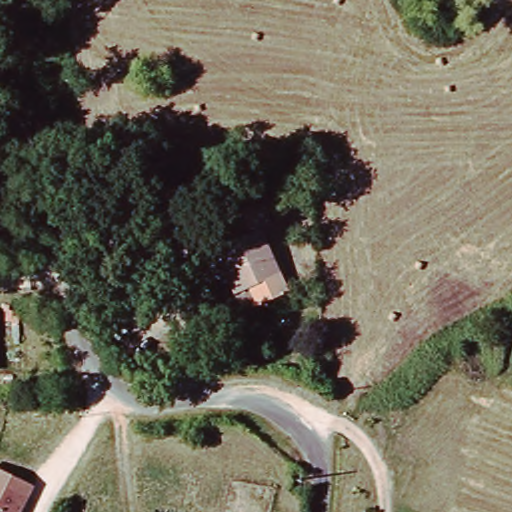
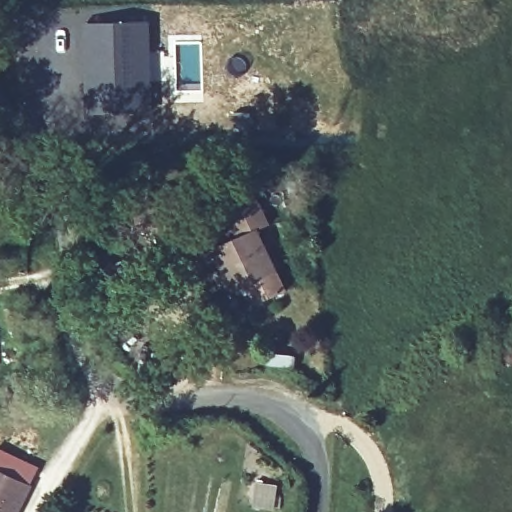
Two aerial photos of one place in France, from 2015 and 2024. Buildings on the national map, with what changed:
new [(90,26),(150,27),(149,112),(89,111),(90,26)]
new [(181,184),(189,214),(141,227),(133,197),(181,184)]
unchanged [(270,217),(258,223),(286,283),(249,301),(242,289),(230,293),(209,249),(239,234),(224,197),(252,184),(270,217)]
unchanged [(29,475),(13,512),(0,512),(0,463),(29,475)]

